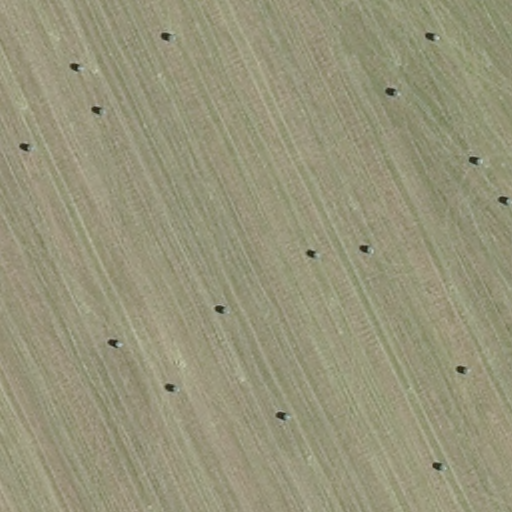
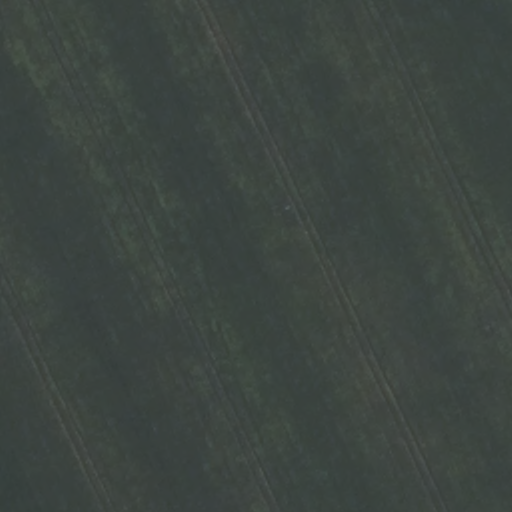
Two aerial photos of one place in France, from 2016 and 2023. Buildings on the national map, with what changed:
[]

